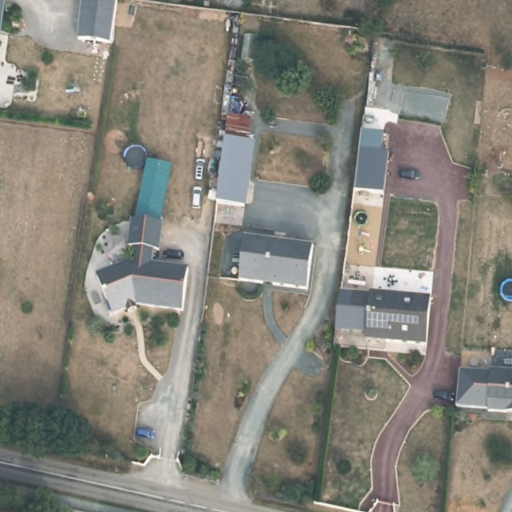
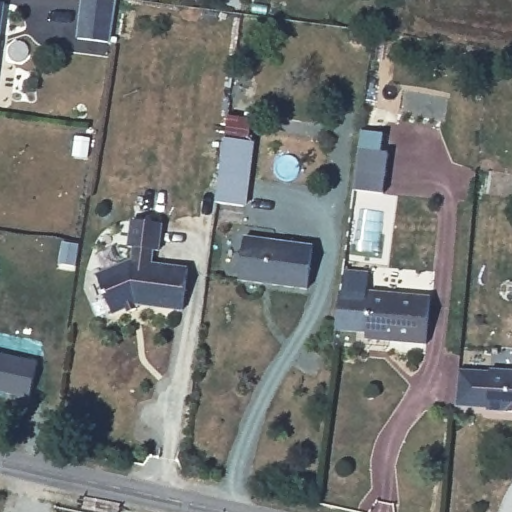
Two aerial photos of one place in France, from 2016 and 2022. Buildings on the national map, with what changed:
unchanged [(80,0),(113,0),(108,43),(74,38),(80,0)]
unchanged [(0,25),(0,3),(3,3),(0,25)]
unchanged [(240,204),(215,200),(223,140),(227,117),(246,119),(243,142),(248,142),(240,204)]
unchanged [(385,131),(382,150),(390,151),(386,191),(355,188),(362,129),(385,131)]
unchanged [(154,242),(149,242),(147,256),(182,260),(177,302),(130,296),(107,305),(92,266),(128,252),(129,239),(125,238),(127,211),(157,215),(154,242)]
unchanged [(271,283),(269,280),(260,279),(257,281),(236,278),(240,236),(307,245),(302,286),(271,283)]
unchanged [(358,339),(363,290),(426,295),(421,344),(358,339)]
new [(31,399),(0,392),(0,352),(39,361),(31,399)]
unchanged [(510,405),(506,407),(484,406),(489,366),(512,368),(512,405),(510,405)]

